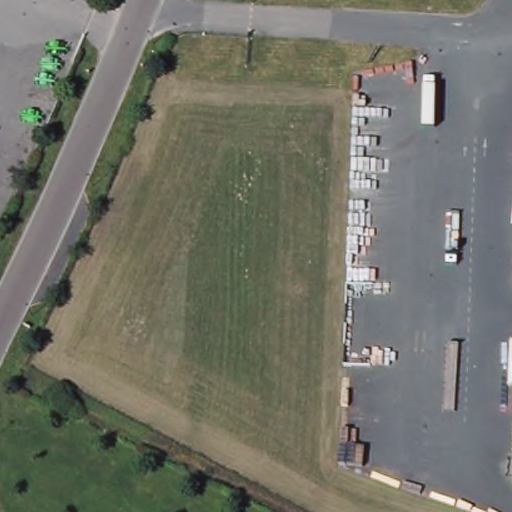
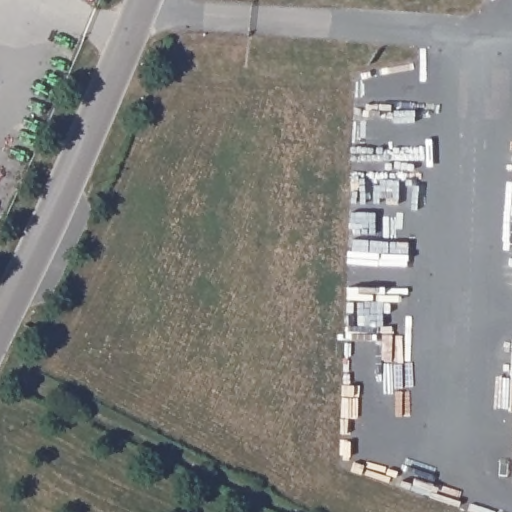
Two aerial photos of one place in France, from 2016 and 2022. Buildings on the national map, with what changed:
[]

